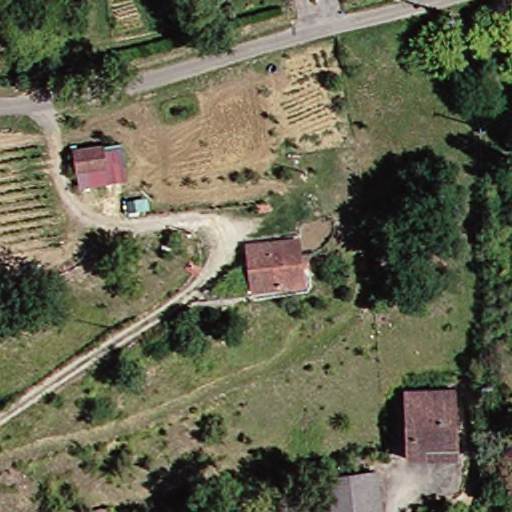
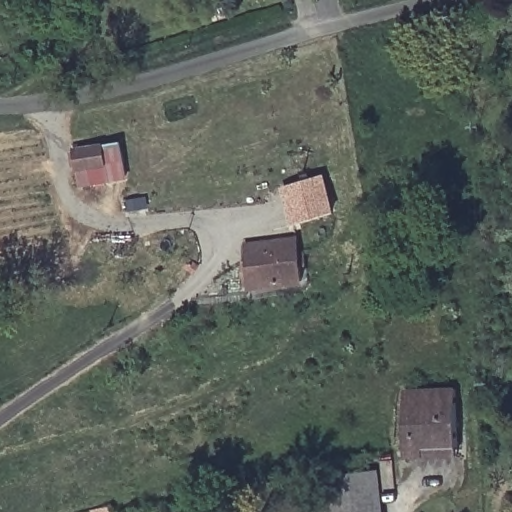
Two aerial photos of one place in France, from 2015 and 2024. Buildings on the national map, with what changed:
unchanged [(104,145),(107,165),(77,170),(74,150),(104,145)]
new [(335,214),(294,226),(283,189),(324,176),(335,214)]
unchanged [(249,262),(247,246),(298,239),(300,254),(305,254),(307,265),(302,266),(304,281),(260,287),(253,288),(249,262)]
unchanged [(402,455),(402,445),(399,386),(451,385),(453,443),(453,452),(402,455)]
unchanged [(318,479),(371,472),(376,512),(322,512),(318,479)]
unchanged [(112,512),(96,512),(112,510),(112,512)]

